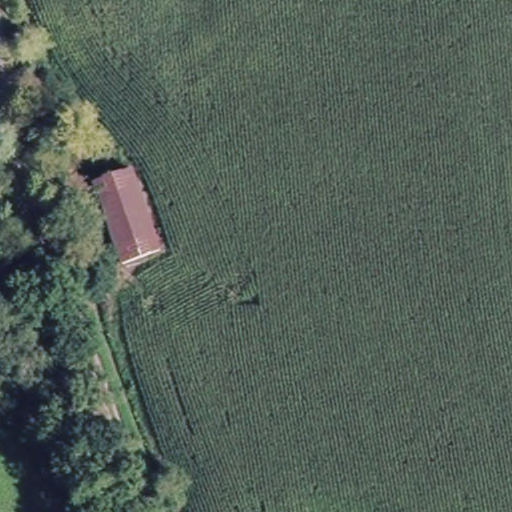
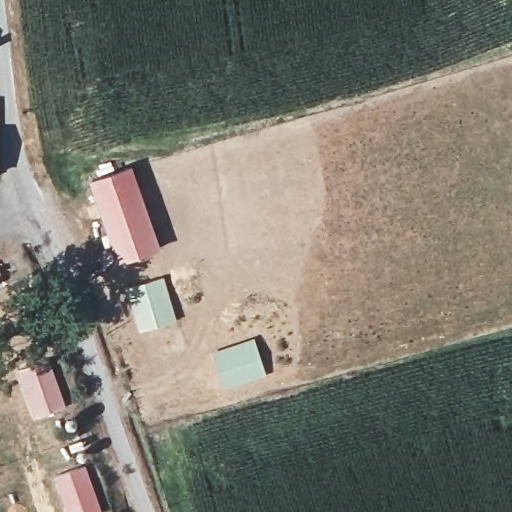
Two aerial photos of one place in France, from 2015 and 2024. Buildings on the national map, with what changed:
unchanged [(124,168),(150,253),(111,266),(83,183),(124,168)]
new [(164,276),(179,321),(139,333),(127,288),(164,276)]
new [(254,336),(268,376),(224,391),(210,353),(254,336)]
new [(17,370),(50,358),(67,407),(35,418),(17,370)]
new [(101,512),(67,512),(53,476),(86,463),(104,511),(101,512)]

